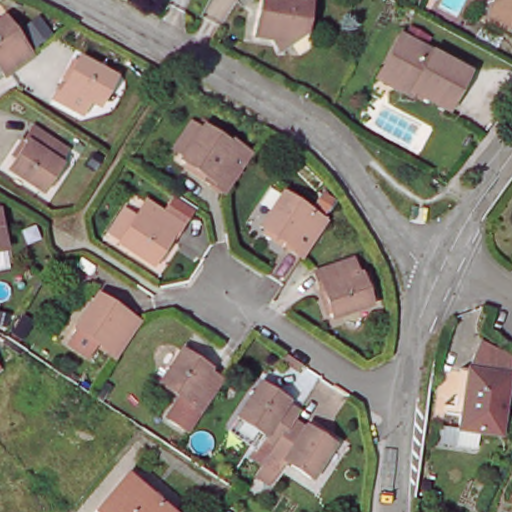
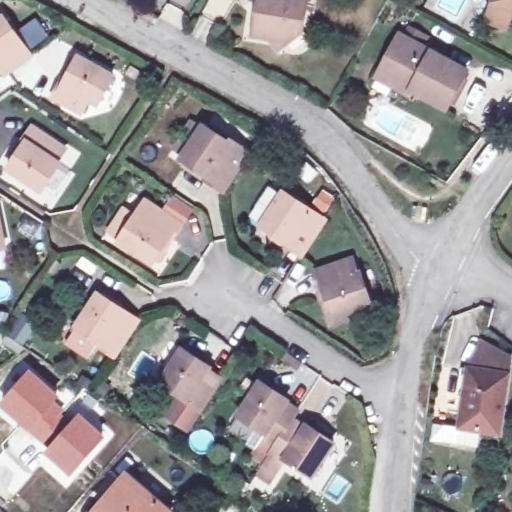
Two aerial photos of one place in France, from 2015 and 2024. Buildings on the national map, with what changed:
unchanged [(270,41),(254,38),(259,13),(265,9),(260,5),(261,0),(308,0),(302,37),(290,45),(277,53),(270,41)]
unchanged [(512,6),(496,0),(512,0),(512,6)]
unchanged [(9,74),(0,64),(0,23),(7,18),(34,56),(9,74)]
unchanged [(380,67),(400,32),(424,45),(432,49),(467,69),(445,106),(412,88),(410,92),(394,83),(376,73),(380,67)]
unchanged [(65,85),(82,58),(116,78),(100,105),(91,100),(84,112),(55,97),(64,84),(65,85)]
unchanged [(12,152),(15,154),(35,126),(67,149),(49,177),(47,175),(39,185),(12,168),(5,163),(12,152)]
unchanged [(230,183),(218,175),(212,184),(184,166),(207,131),(247,157),(230,183)]
unchanged [(310,243),(297,234),(291,244),(264,226),(287,192),(327,220),(310,243)]
unchanged [(0,207),(8,247),(0,249),(0,208),(0,207)]
unchanged [(184,225),(175,238),(172,236),(154,261),(122,240),(140,214),(149,219),(157,207),(184,225)]
unchanged [(355,274),(365,272),(372,304),(333,312),(327,282),(323,283),(320,265),(352,259),(355,274)]
unchanged [(104,346),(105,343),(80,326),(104,292),(128,310),(122,318),(136,327),(117,355),(104,346)]
new [(21,311),(42,324),(24,348),(5,335),(21,311)]
unchanged [(184,347),(210,366),(205,375),(217,383),(199,410),(187,427),(167,414),(180,394),(161,381),(184,347)]
unchanged [(512,365),(505,393),(497,444),(459,437),(467,375),(480,348),(512,365)]
new [(29,368),(60,394),(53,400),(71,417),(44,446),(0,406),(0,402),(29,368)]
unchanged [(264,433),(237,415),(260,381),(287,399),(281,407),(295,417),(289,426),(300,433),(306,425),(332,443),(310,476),(284,458),(281,461),(264,488),(248,476),(259,461),(249,455),(253,448),(264,433)]
new [(45,447),(44,446),(71,417),(78,410),(107,436),(70,477),(42,452),(45,447)]
unchanged [(96,512),(127,474),(173,512),(96,512)]

